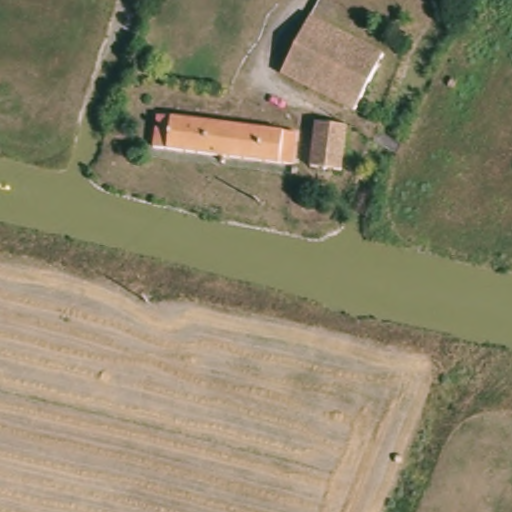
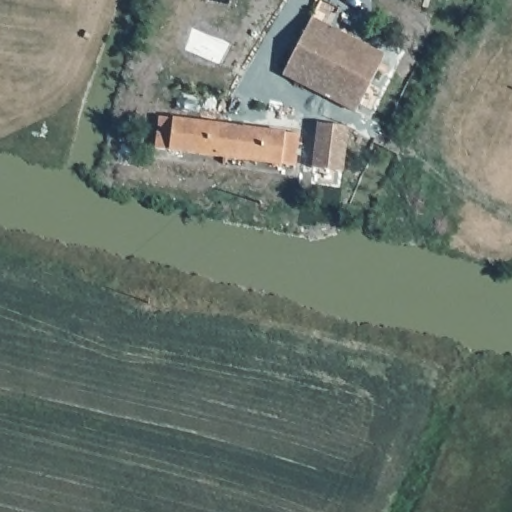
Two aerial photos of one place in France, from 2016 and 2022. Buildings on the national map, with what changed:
unchanged [(357,113),(284,75),(313,19),(387,56),(357,113)]
unchanged [(301,132),(297,165),(157,146),(161,115),(301,132)]
unchanged [(350,126),(344,170),(314,166),(320,122),(350,126)]

